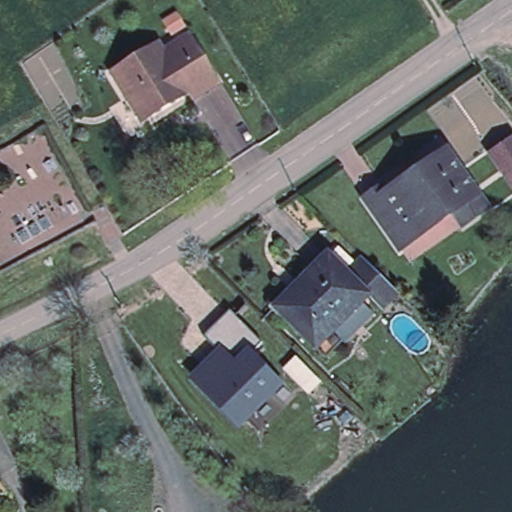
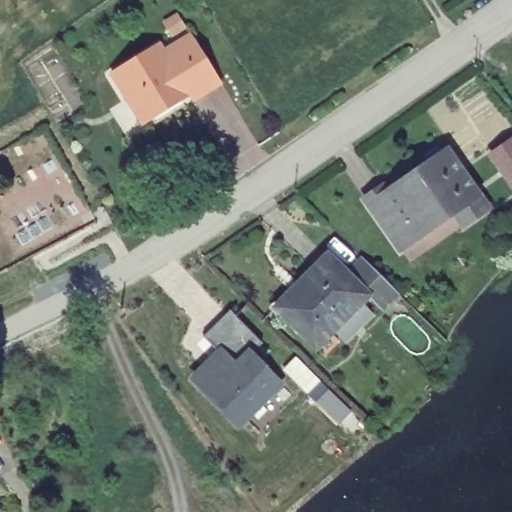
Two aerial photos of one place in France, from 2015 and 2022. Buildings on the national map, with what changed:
unchanged [(162,45),(167,52),(193,35),(223,83),(197,101),(195,97),(147,127),(115,75),(162,45)]
unchanged [(512,141),(512,186),(490,155),(512,141)]
unchanged [(455,213),(402,251),(367,202),(383,190),(387,196),(447,154),(487,210),(472,220),(465,225),(455,213)]
unchanged [(323,352),(313,342),(312,344),(271,303),(324,250),(343,269),(365,290),(362,293),(330,326),(340,336),(323,352)]
unchanged [(358,255),(393,289),(376,306),(362,293),(365,290),(343,269),(358,255)]
unchanged [(230,310),(266,342),(255,354),(285,384),(240,430),(189,377),(219,348),(206,337),(230,310)]
unchanged [(345,375),(367,398),(357,407),(335,385),(345,375)]

